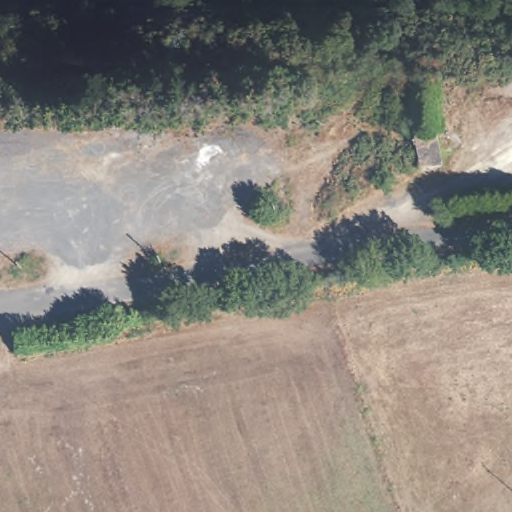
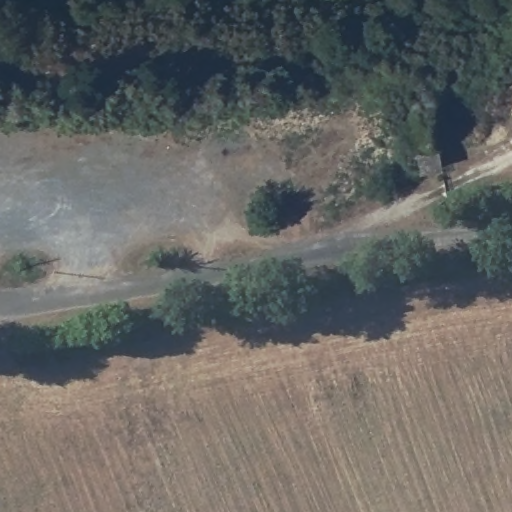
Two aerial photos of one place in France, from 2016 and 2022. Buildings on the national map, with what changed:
unchanged [(434,137),(438,166),(416,172),(412,141),(434,137)]

